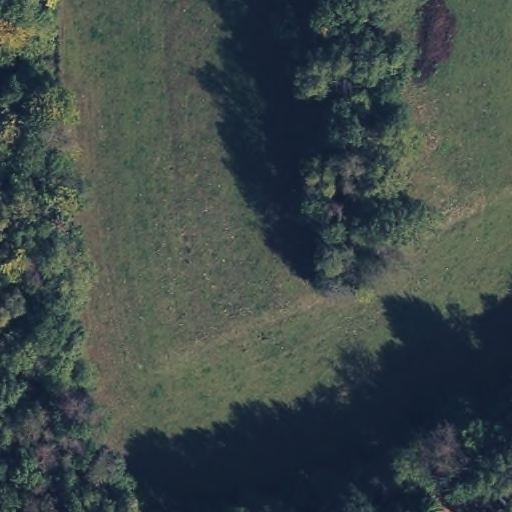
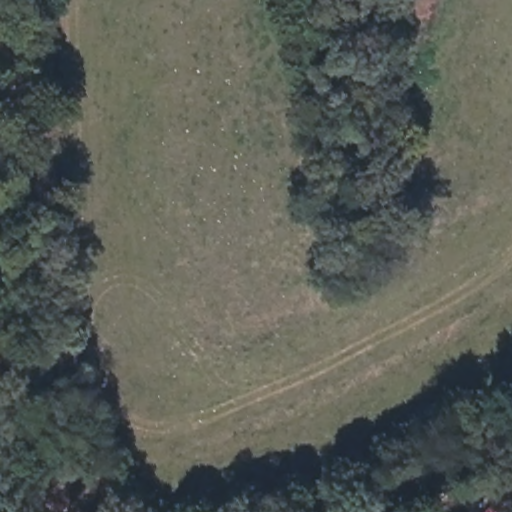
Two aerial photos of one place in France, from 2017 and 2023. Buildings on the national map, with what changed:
unchanged [(512,509),(496,481),(512,472),(512,509)]

